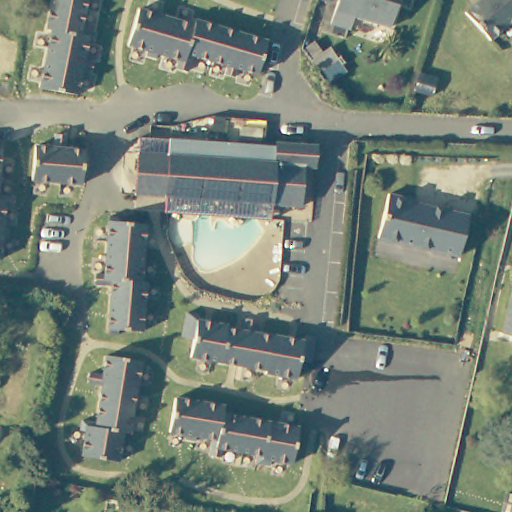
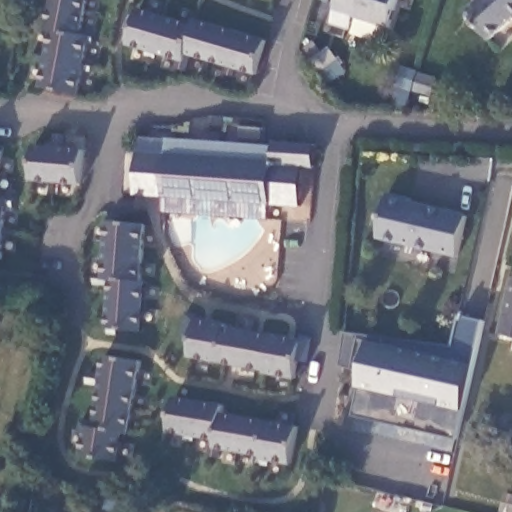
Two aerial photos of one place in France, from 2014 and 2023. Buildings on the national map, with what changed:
unchanged [(45,29),(51,0),(88,0),(82,34),(89,35),(77,94),(40,87),(51,31),(45,29)]
unchanged [(353,15),(350,29),(330,24),(338,0),(398,0),(390,27),(353,15)]
unchanged [(485,43),(461,17),(477,3),(478,0),(512,0),(512,20),(511,19),(485,43)]
unchanged [(194,23),(195,19),(268,41),(260,75),(193,56),(188,71),(175,67),(176,58),(128,43),(139,7),(194,23)]
unchanged [(169,138),(274,146),(275,141),(317,143),(315,168),(303,167),(300,207),(272,204),(270,220),(164,212),(165,196),(135,194),(138,152),(140,137),(169,138)]
unchanged [(85,147),(82,184),(33,180),(36,144),(85,147)]
unchanged [(2,151),(0,179),(0,151),(2,151)]
unchanged [(465,258),(382,240),(391,195),(415,200),(414,205),(470,217),(465,258)]
unchanged [(5,200),(0,258),(0,200),(5,200)]
unchanged [(145,224),(141,280),(146,281),(142,332),(106,330),(109,285),(94,283),(95,274),(104,274),(109,220),(145,224)]
unchanged [(512,335),(505,333),(512,299),(512,335)]
unchanged [(227,324),(227,327),(243,329),(245,316),(255,318),(253,331),(303,339),(296,378),(265,374),(266,370),(190,356),(193,339),(181,337),(186,312),(198,314),(197,320),(227,324)]
new [(458,437),(353,414),(358,386),(360,368),(341,365),(345,333),(453,345),(460,315),(484,321),(458,437)]
unchanged [(141,362),(131,434),(123,433),(119,461),(81,456),(85,431),(79,430),(81,418),(96,420),(101,385),(87,384),(90,372),(103,374),(105,355),(141,362)]
unchanged [(224,404),(222,413),(298,426),(292,463),(268,460),(268,464),(255,461),(255,455),(220,450),(220,456),(208,455),(210,439),(170,433),(175,397),(224,404)]

